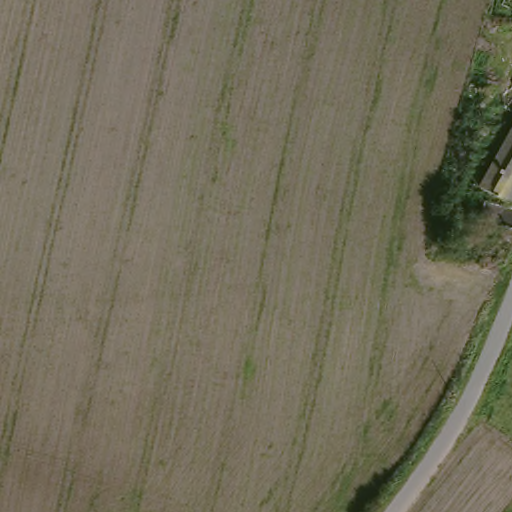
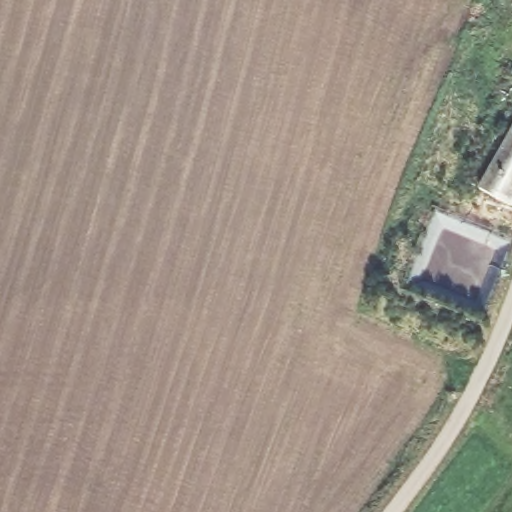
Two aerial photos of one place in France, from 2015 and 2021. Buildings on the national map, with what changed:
unchanged [(479,192),(512,132),(512,210),(511,210),(479,192)]

